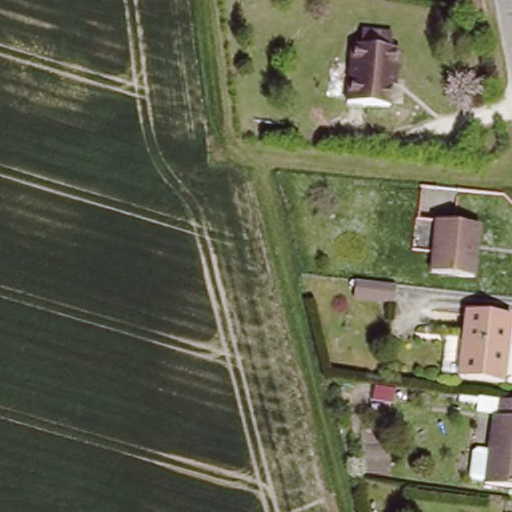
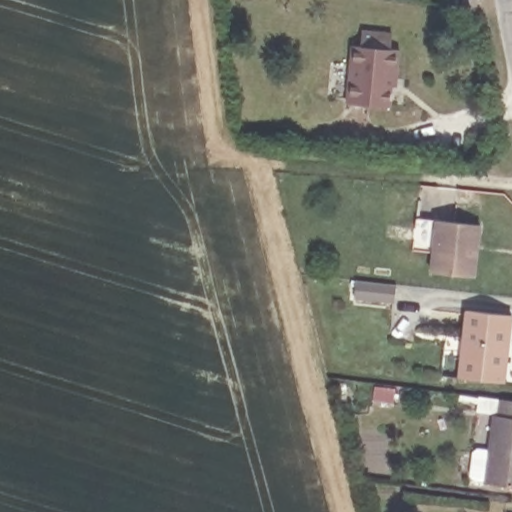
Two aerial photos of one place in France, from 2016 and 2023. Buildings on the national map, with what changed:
unchanged [(483,0),(485,10),(469,11),(467,0),(483,0)]
unchanged [(403,72),(399,72),(397,84),(352,79),(357,46),(363,47),(366,32),(381,35),(396,36),(394,51),(406,53),(403,72)]
unchanged [(397,84),(393,110),(348,102),(352,79),(397,84)]
unchanged [(437,273),(441,250),(418,247),(421,220),(485,229),(478,278),(437,273)]
unchanged [(443,376),(449,337),(467,340),(470,313),(512,318),(512,339),(506,384),(443,376)]
unchanged [(494,483),(502,415),(507,416),(508,400),(512,401),(512,486),(494,483)]

